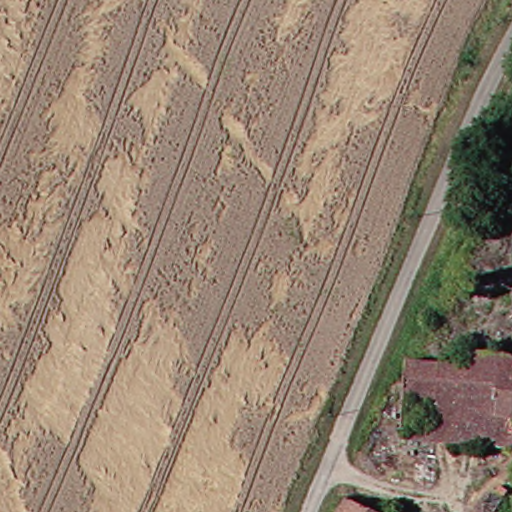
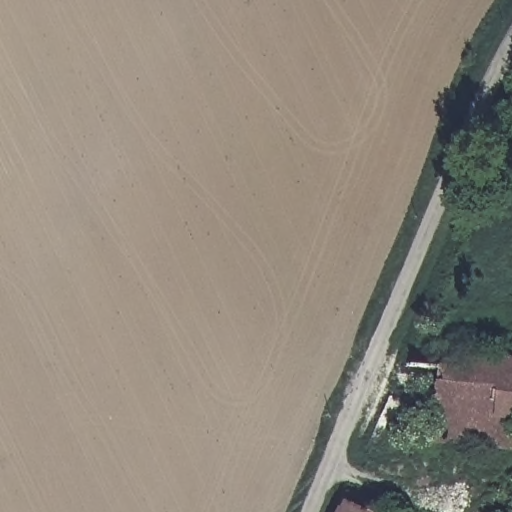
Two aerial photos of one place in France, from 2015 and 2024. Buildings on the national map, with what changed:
unchanged [(459,347),(492,353),(512,362),(512,405),(510,405),(509,451),(396,441),(402,370),(458,371),(459,347)]
unchanged [(351,505),(368,512),(348,512),(351,505)]

